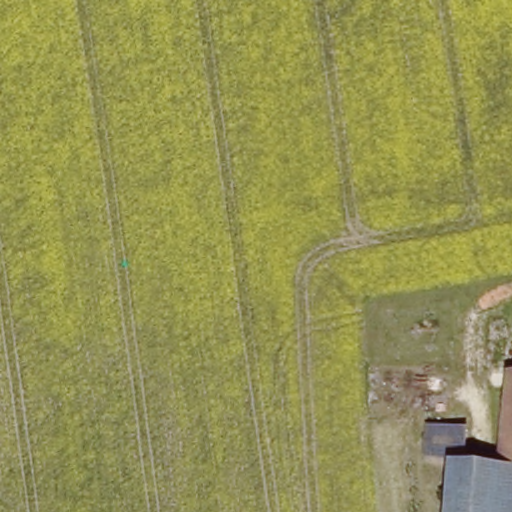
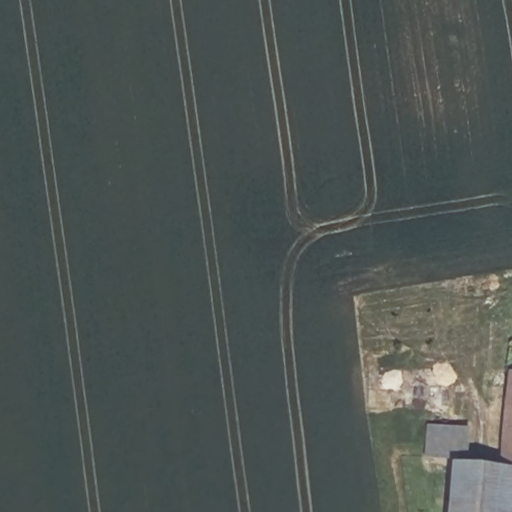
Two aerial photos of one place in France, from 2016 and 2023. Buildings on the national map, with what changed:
unchanged [(507,369),(512,370),(512,468),(498,467),(507,369)]
unchanged [(428,453),(431,420),(473,424),(470,457),(428,453)]
unchanged [(456,462),(498,467),(512,468),(512,512),(450,512),(456,462)]

